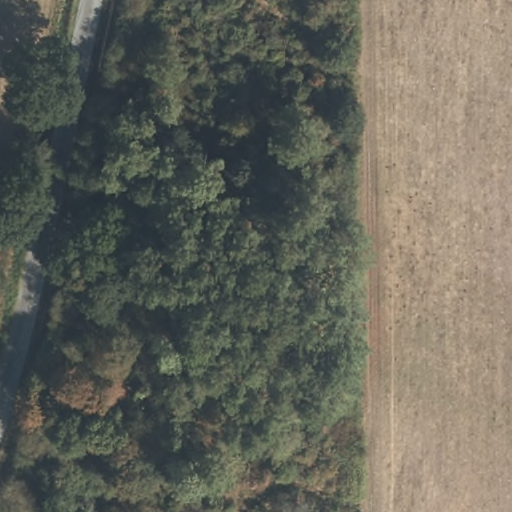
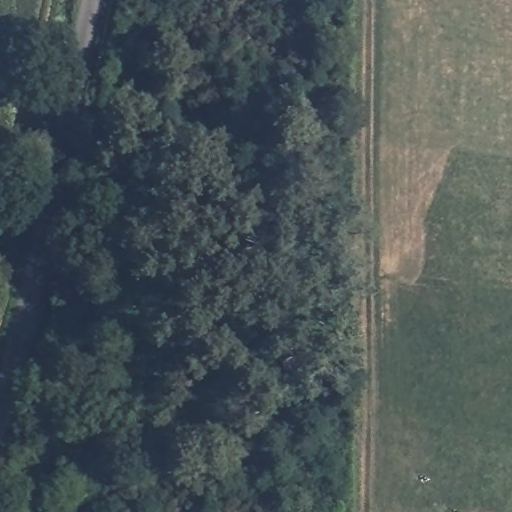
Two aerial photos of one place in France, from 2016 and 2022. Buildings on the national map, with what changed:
[]

